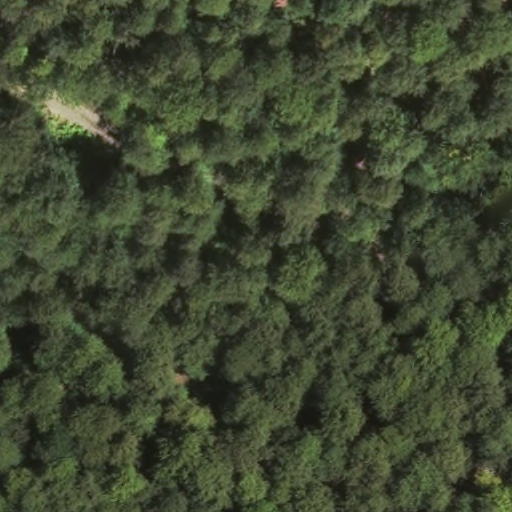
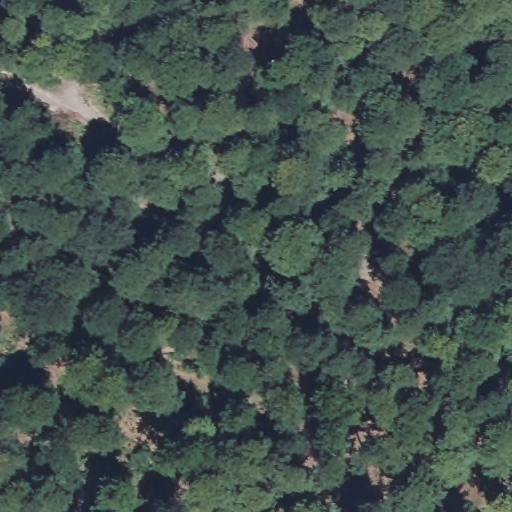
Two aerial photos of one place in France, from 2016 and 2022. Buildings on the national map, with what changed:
[]

